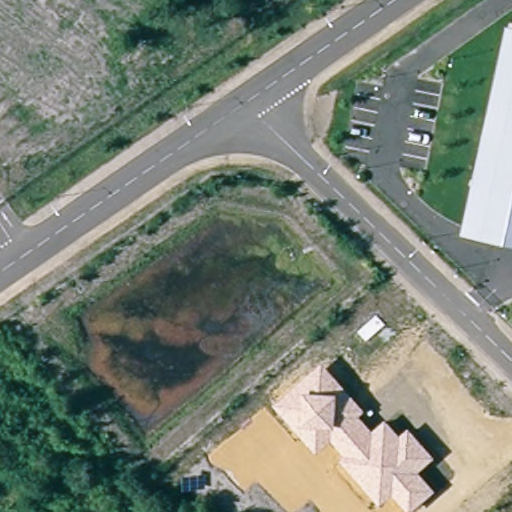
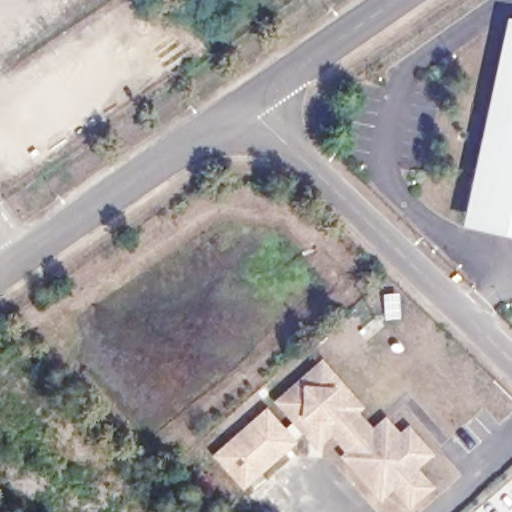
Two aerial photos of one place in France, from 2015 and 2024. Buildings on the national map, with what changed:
unchanged [(512,21),(512,235),(461,225),(506,20),(512,21)]
unchanged [(365,408),(360,415),(372,428),(386,417),(399,433),(408,426),(435,457),(419,471),(435,490),(409,511),(392,492),(379,503),(340,458),(343,453),(331,439),(316,451),(272,402),(321,360),(365,408)]
new [(285,431),(292,425),(302,436),(295,442),(297,445),(242,492),(212,457),(266,407),(285,431)]

